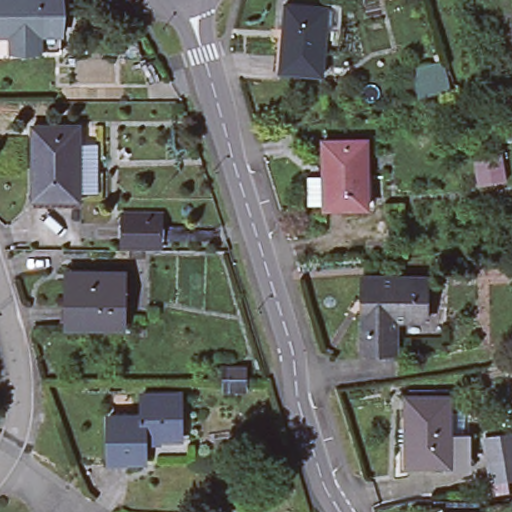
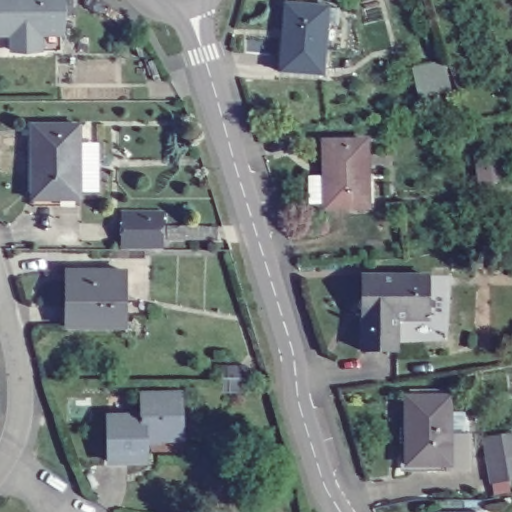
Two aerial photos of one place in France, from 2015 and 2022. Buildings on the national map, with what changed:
unchanged [(8,51),(10,50),(10,34),(0,34),(0,0),(55,0),(55,33),(56,52),(34,52),(8,52),(8,51)]
unchanged [(280,72),(285,4),(328,7),(328,8),(338,9),(337,26),(326,25),(322,75),(280,72)]
unchanged [(435,78),(438,93),(419,98),(415,83),(435,78)]
unchanged [(80,193),(80,199),(33,200),(33,167),(33,128),(33,126),(79,126),(79,144),(96,144),(96,157),(96,193),(80,193)]
unchanged [(307,176),(324,176),(323,141),(366,141),(367,172),(373,172),(373,206),(367,206),(367,208),(325,209),(325,205),(308,205),(307,176)]
unchanged [(506,181),(478,186),(473,157),(501,152),(506,181)]
unchanged [(123,217),(160,217),(160,245),(123,245),(123,217)]
unchanged [(470,269),(468,259),(480,257),(481,268),(470,269)]
unchanged [(125,328),(66,328),(66,303),(66,272),(72,272),(125,272),(125,328)]
unchanged [(363,277),(427,277),(427,319),(396,319),(395,351),(362,351),(363,277)]
unchanged [(230,391),(230,380),(230,368),(245,368),(245,380),(245,391),(230,391)]
unchanged [(142,417),(142,395),(180,395),(181,439),(145,440),(145,462),(109,463),(108,418),(142,417)]
unchanged [(470,470),(450,470),(406,471),(406,402),(450,402),(450,440),(470,440),(470,470)]
unchanged [(512,451),(512,474),(488,478),(485,456),(512,451)]

